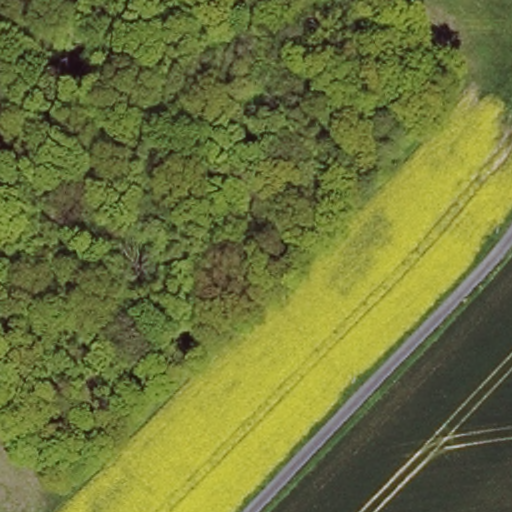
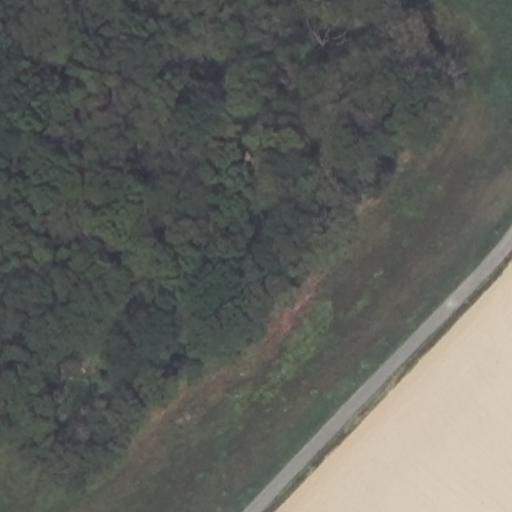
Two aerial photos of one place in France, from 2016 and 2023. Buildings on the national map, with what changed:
[]

